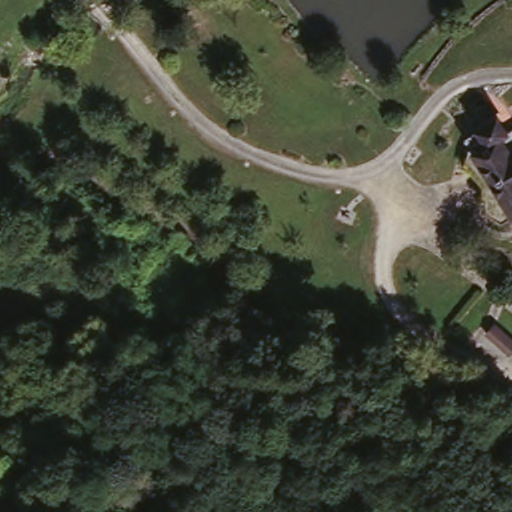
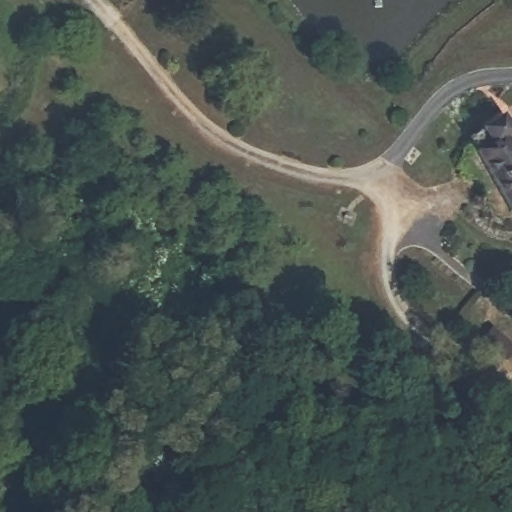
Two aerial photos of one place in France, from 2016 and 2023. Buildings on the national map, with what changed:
unchanged [(484,206),(471,185),(482,179),(471,161),(486,150),(475,136),(479,126),(510,108),(512,111),(512,145),(511,145),(512,146),(512,225),(511,226),(495,200),(484,206)]
unchanged [(495,323),(512,338),(512,355),(508,359),(483,336),(495,323)]

